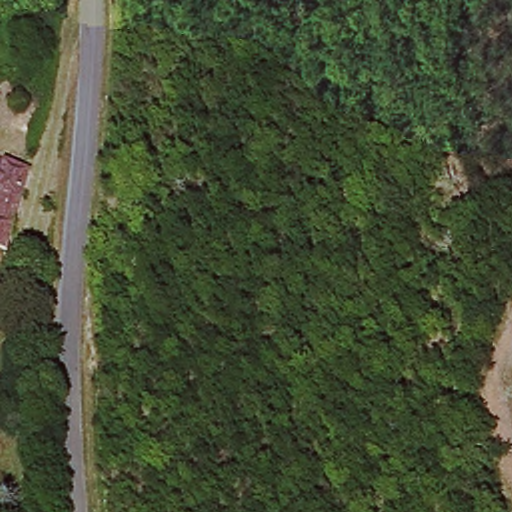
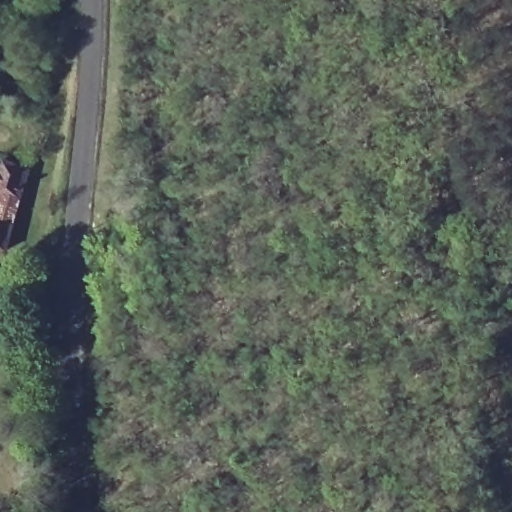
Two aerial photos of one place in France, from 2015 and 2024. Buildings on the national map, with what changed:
unchanged [(0,150),(7,151),(31,153),(19,240),(0,238),(0,189),(0,184),(0,183),(0,150)]

